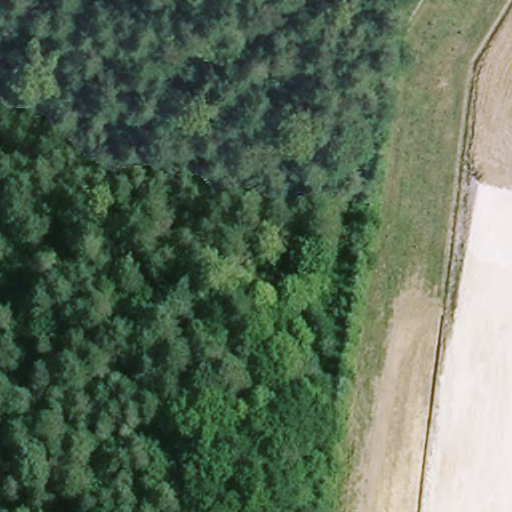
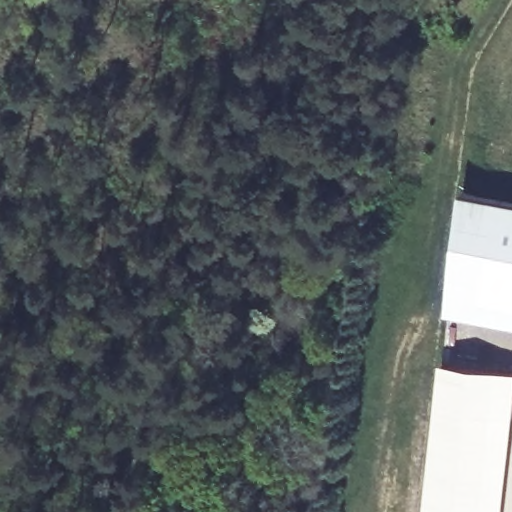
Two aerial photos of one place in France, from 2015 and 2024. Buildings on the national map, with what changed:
new [(512,323),(447,311),(461,192),(512,201),(512,323)]
new [(423,512),(441,362),(512,372),(512,433),(503,512),(423,512)]

